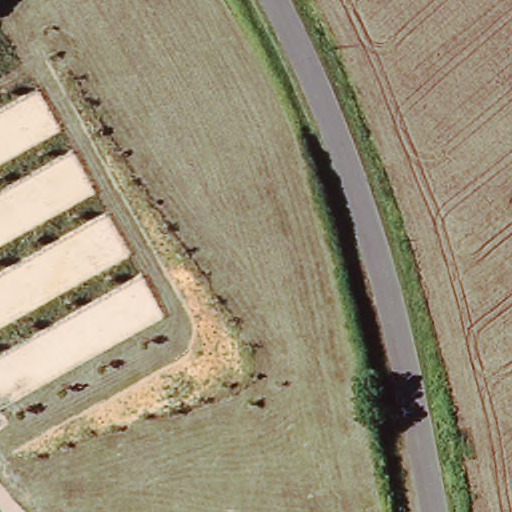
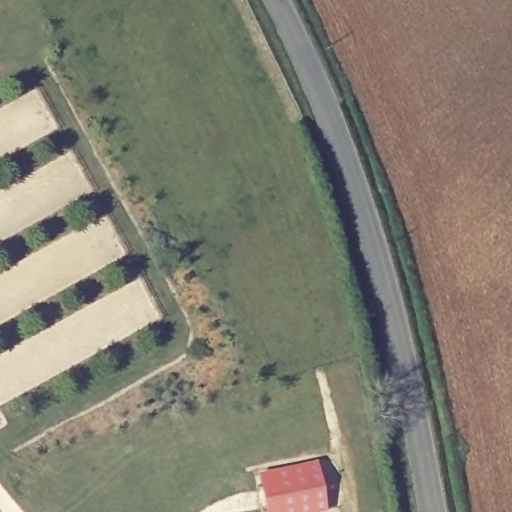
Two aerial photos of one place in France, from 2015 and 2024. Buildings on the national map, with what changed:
new [(315,461),(325,512),(262,512),(254,474),(315,461)]

